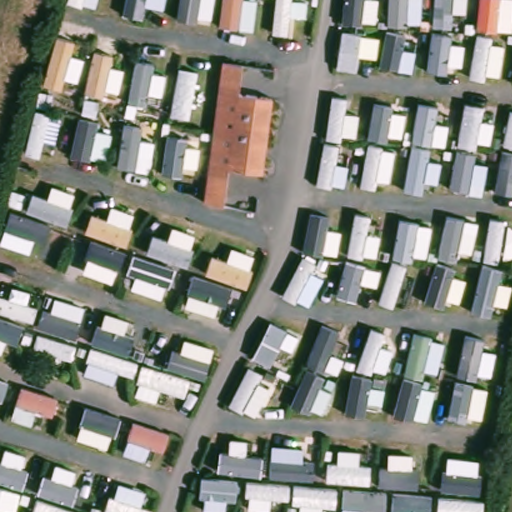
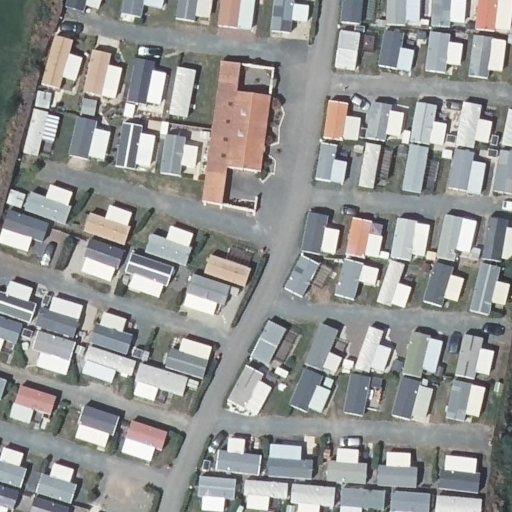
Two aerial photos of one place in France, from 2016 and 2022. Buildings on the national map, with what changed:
unchanged [(236,80),(235,90),(268,93),(255,170),(224,163),(220,172),(202,169),(217,77),(236,80)]

